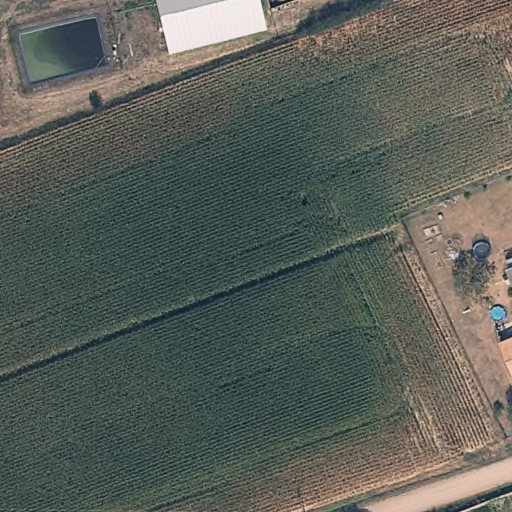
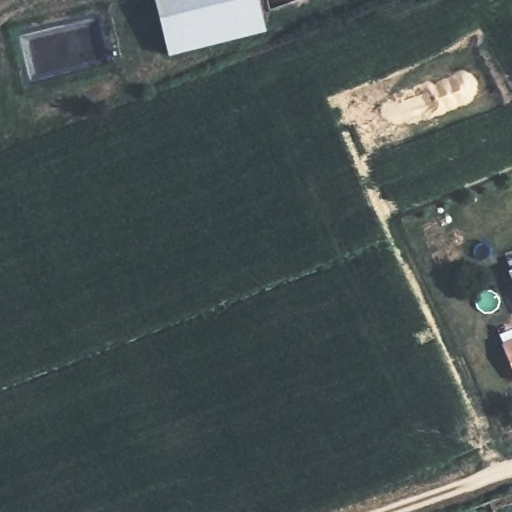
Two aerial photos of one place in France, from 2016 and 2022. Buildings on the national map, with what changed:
unchanged [(169,55),(154,0),(259,0),(266,30),(169,55)]
unchanged [(509,270),(512,269),(512,279),(509,270)]
unchanged [(505,343),(512,340),(512,363),(505,343)]

